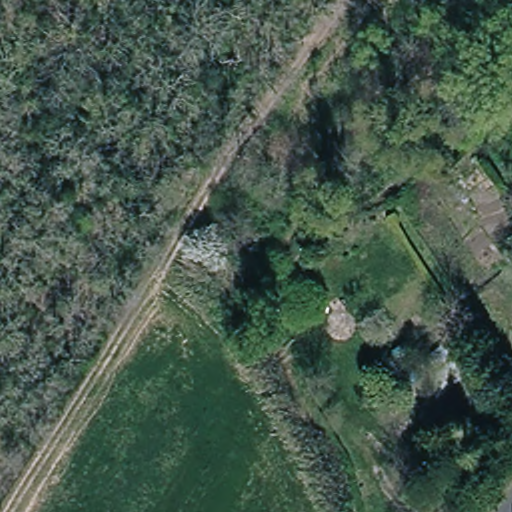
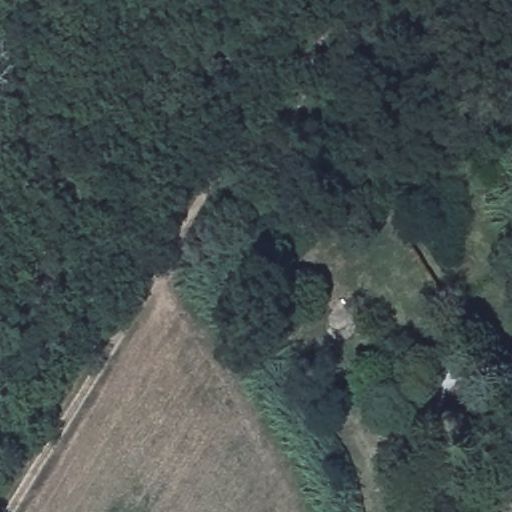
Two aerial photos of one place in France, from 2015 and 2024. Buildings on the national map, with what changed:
[]

